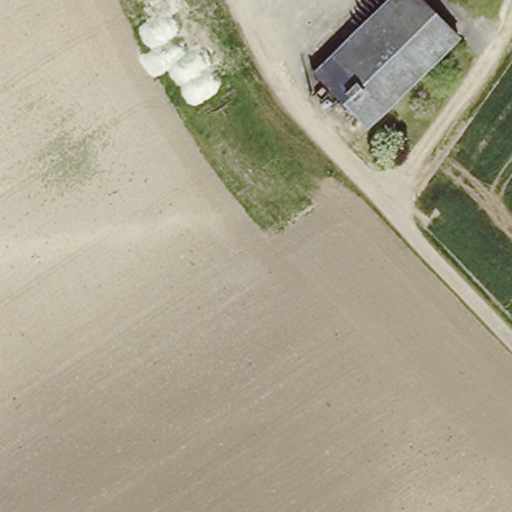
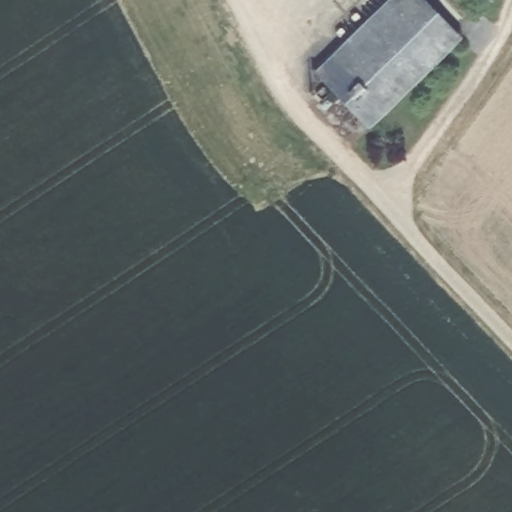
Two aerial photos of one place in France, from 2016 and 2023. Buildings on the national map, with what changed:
unchanged [(453,40),(361,129),(311,74),(388,0),(414,0),(453,40)]

